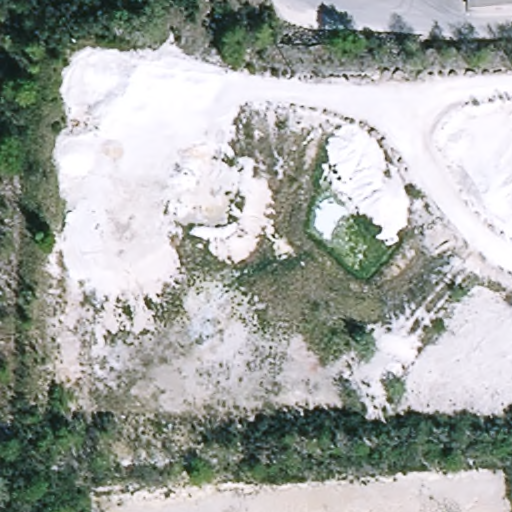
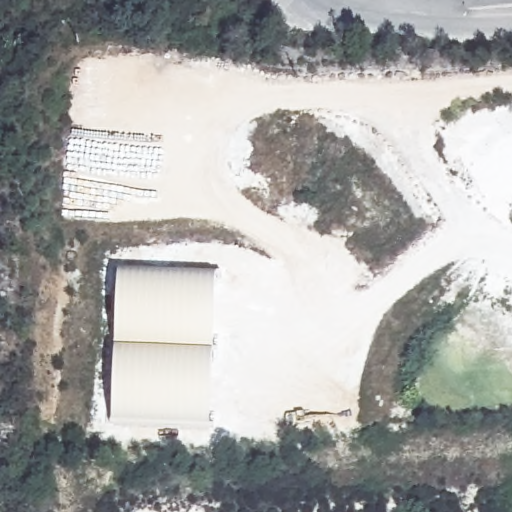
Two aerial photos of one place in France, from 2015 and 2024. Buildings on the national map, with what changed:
unchanged [(471,0),(512,0),(512,6),(472,9),(471,0)]
new [(112,419),(118,273),(215,277),(208,422),(112,419)]

